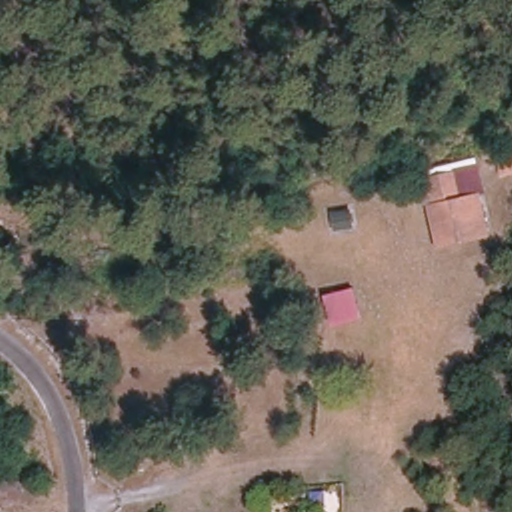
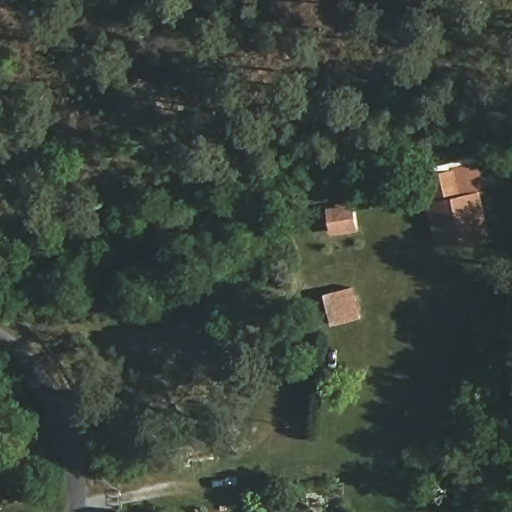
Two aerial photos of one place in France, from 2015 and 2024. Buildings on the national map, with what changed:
unchanged [(438,246),(428,204),(434,202),(428,176),(457,171),(463,197),(483,192),(491,235),(438,246)]
unchanged [(362,317),(333,325),(326,295),(354,286),(362,317)]

